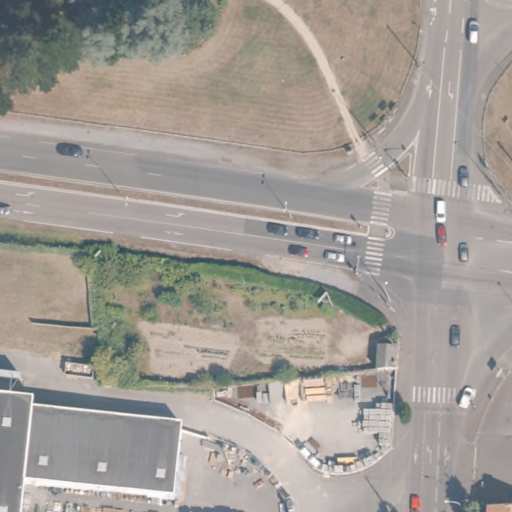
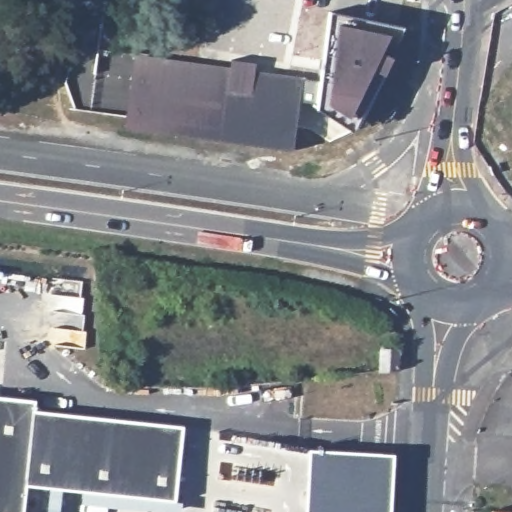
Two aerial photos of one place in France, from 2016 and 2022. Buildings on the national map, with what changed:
new [(323,8),(399,19),(358,128),(310,105),(323,8)]
new [(133,53),(300,77),(290,151),(122,127),(133,53)]
unchanged [(385,347),(407,346),(408,348),(406,368),(386,370),(385,347)]
unchanged [(32,415),(181,433),(172,508),(23,490),(26,468),(0,465),(0,401),(33,405),(32,415)]
new [(388,512),(304,512),(307,449),(391,452),(388,512)]
unchanged [(0,512),(0,465),(26,468),(23,490),(20,512),(0,512)]

